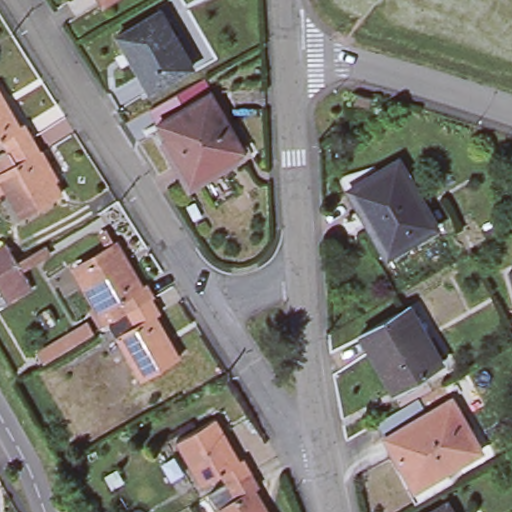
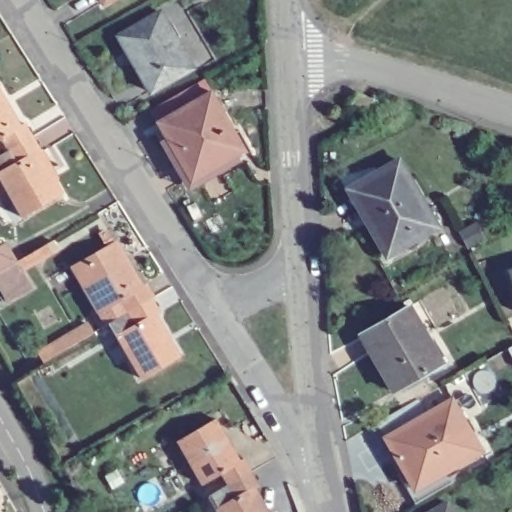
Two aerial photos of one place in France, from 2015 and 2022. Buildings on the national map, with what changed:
unchanged [(102,4),(100,0),(108,0),(102,4)]
unchanged [(192,67),(150,92),(117,36),(160,11),(192,67)]
unchanged [(187,190),(160,141),(166,138),(157,122),(210,92),(243,150),(232,156),(236,162),(187,190)]
unchanged [(352,103),(355,93),(371,97),(369,107),(352,103)]
unchanged [(0,145),(0,109),(11,127),(19,122),(27,136),(35,150),(37,149),(52,175),(46,179),(55,195),(16,216),(0,189),(0,151),(2,150),(0,145)]
unchanged [(367,222),(355,229),(347,216),(359,210),(347,189),(397,160),(437,227),(386,256),(367,222)]
unchanged [(179,351),(141,373),(116,330),(109,318),(101,322),(92,307),(100,303),(77,262),(115,240),(124,255),(120,257),(135,284),(143,280),(151,293),(159,307),(151,311),(166,338),(170,336),(179,351)]
unchanged [(0,251),(5,249),(16,266),(44,250),(48,257),(20,274),(26,285),(2,299),(0,295),(0,251)]
unchanged [(507,267),(512,266),(512,282),(507,267)]
unchanged [(360,335),(409,306),(441,362),(392,391),(360,335)]
unchanged [(92,327),(65,343),(60,334),(87,318),(92,327)]
unchanged [(397,460),(384,437),(451,399),(481,451),(414,490),(397,460)]
unchanged [(202,496),(222,485),(215,473),(196,484),(171,440),(210,418),(218,433),(215,436),(230,462),(238,457),(246,471),(254,485),(246,490),(258,512),(212,512),(210,508),(202,496)]
unchanged [(451,512),(430,512),(446,503),(451,512)]

